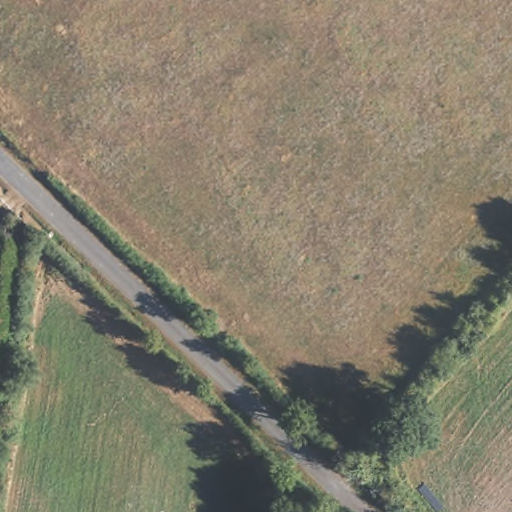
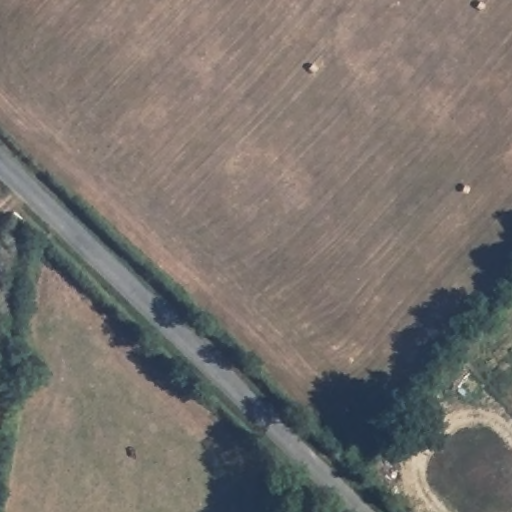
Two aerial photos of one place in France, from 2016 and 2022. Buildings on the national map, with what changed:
[]

